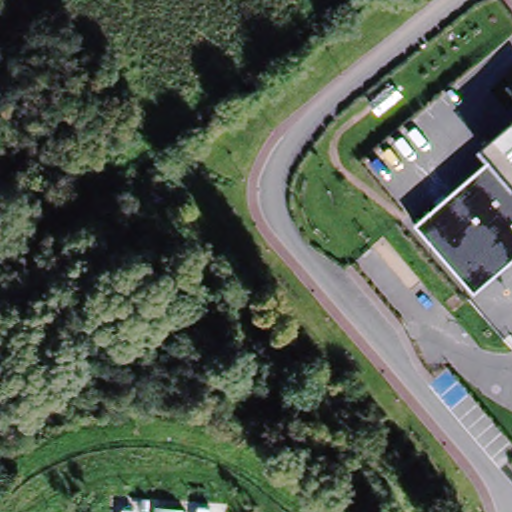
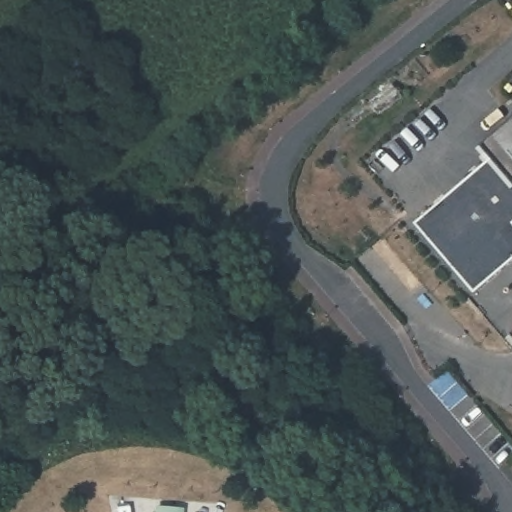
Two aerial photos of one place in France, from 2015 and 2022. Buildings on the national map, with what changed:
unchanged [(415,226),(488,162),(478,150),(512,122),(512,263),(473,294),(415,226)]
unchanged [(156,512),(157,509),(179,511),(179,512),(156,512)]

